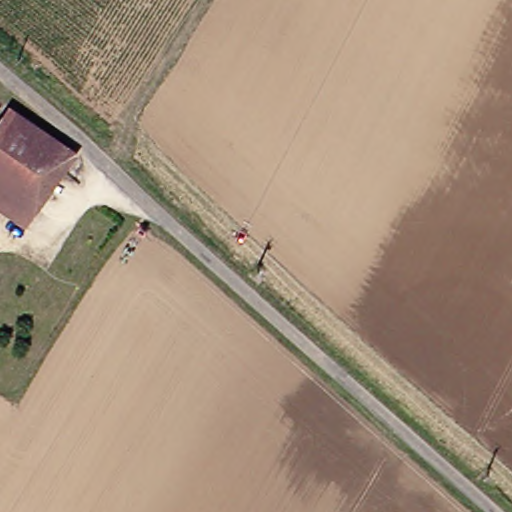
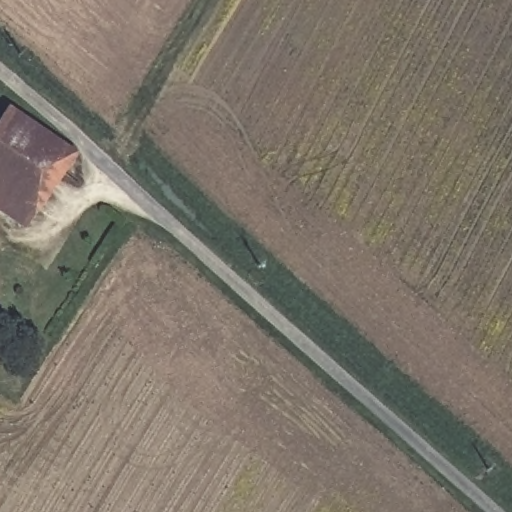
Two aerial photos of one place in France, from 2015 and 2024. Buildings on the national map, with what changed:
unchanged [(0,194),(0,113),(5,106),(57,141),(14,204),(0,194)]
unchanged [(22,227),(0,213),(0,194),(14,204),(57,141),(74,153),(22,227)]

